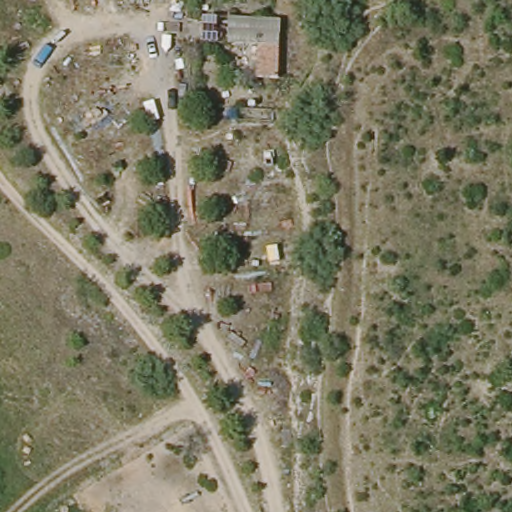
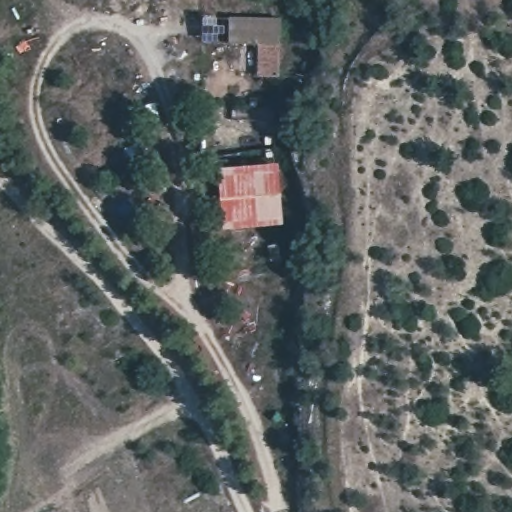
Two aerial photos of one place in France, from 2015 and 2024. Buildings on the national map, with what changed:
unchanged [(241,43),(242,18),(283,18),(282,79),(257,78),(258,44),(241,43)]
new [(285,224),(225,229),(216,167),(278,161),(285,224)]

